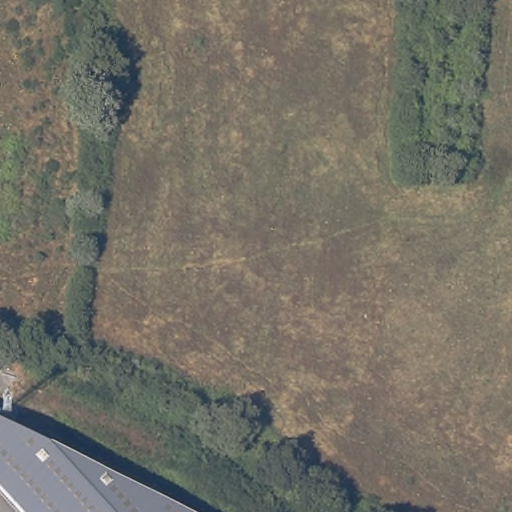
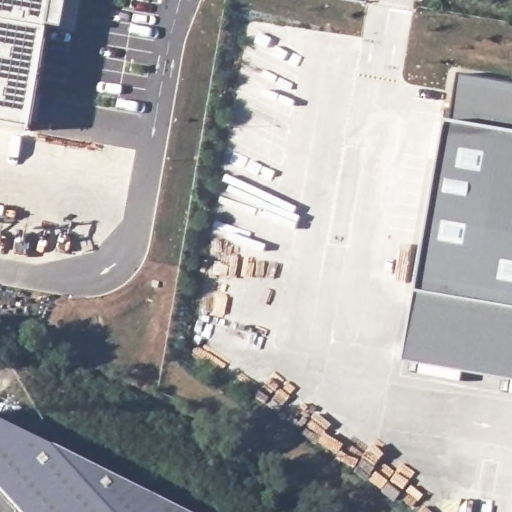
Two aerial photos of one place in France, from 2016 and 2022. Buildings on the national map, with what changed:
new [(22,129),(0,125),(0,0),(46,0),(40,32),(22,129)]
new [(399,361),(410,293),(440,121),(448,122),(456,73),(512,83),(512,380),(399,361)]
unchanged [(0,417),(189,512),(28,512),(0,481),(0,417)]

